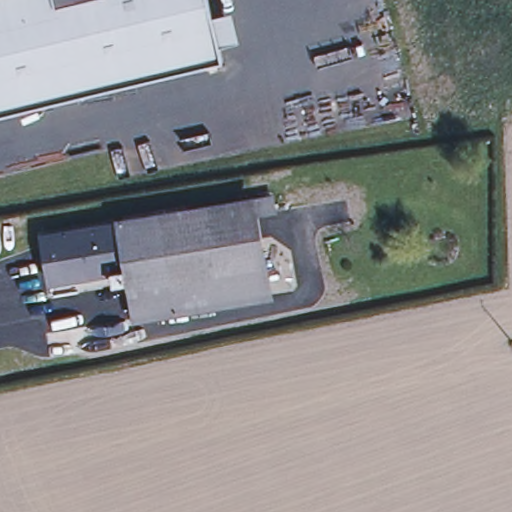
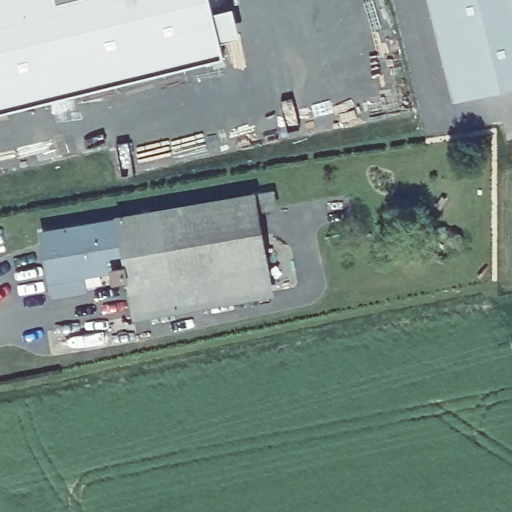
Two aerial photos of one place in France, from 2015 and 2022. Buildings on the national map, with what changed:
unchanged [(0,116),(0,0),(208,0),(223,61),(0,116)]
new [(454,102),(429,0),(512,0),(512,86),(454,102)]
unchanged [(257,197),(274,293),(138,316),(131,277),(123,220),(257,197)]
unchanged [(123,220),(131,277),(118,279),(117,268),(55,278),(47,232),(123,220)]

